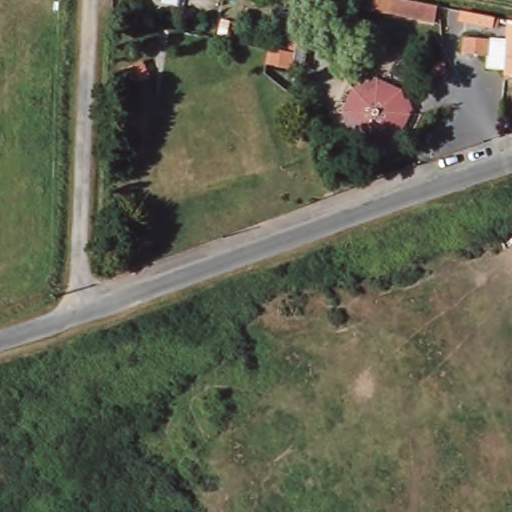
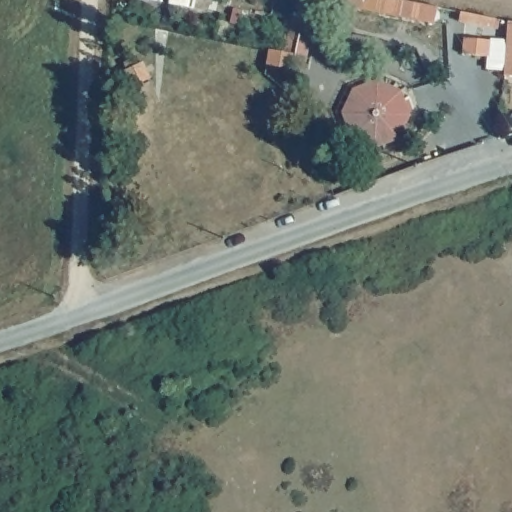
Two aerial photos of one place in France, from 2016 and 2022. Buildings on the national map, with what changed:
unchanged [(267,64),(269,50),(285,52),(295,0),(308,0),(295,68),(267,64)]
unchanged [(325,4),(326,0),(397,0),(440,9),(436,25),(325,4)]
unchanged [(491,25),(466,20),(468,11),(494,16),(491,25)]
unchanged [(506,36),(506,22),(512,23),(512,81),(504,81),(506,36)]
unchanged [(488,38),(486,54),(463,51),(465,34),(488,38)]
unchanged [(144,62),(150,75),(131,85),(126,71),(144,62)]
unchanged [(400,88),(410,110),(399,138),(371,146),(347,134),(339,111),(350,83),(376,76),(400,88)]

